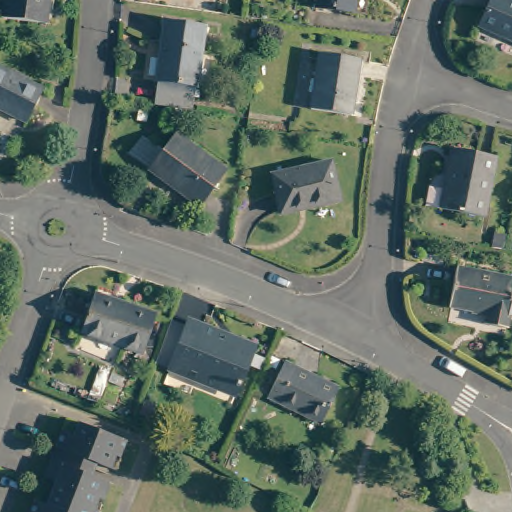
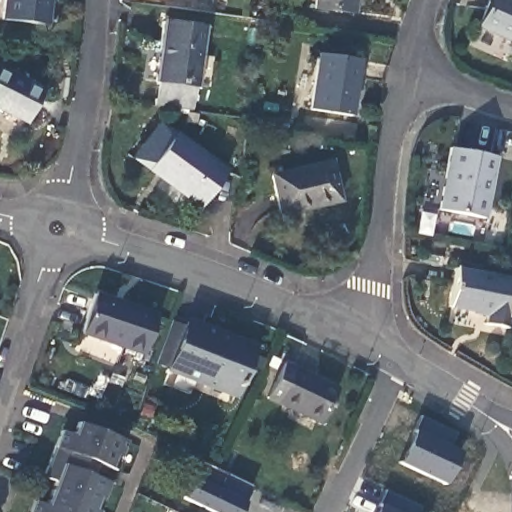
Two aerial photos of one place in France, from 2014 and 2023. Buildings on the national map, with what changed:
unchanged [(2,19),(5,0),(49,0),(46,25),(2,19)]
unchanged [(316,9),(317,0),(356,0),(354,13),(316,9)]
unchanged [(490,0),(512,0),(512,41),(479,27),(490,0)]
unchanged [(157,71),(156,71),(165,10),(207,16),(198,77),(195,77),(192,101),(154,95),(157,71)]
unchanged [(359,54),(352,111),(311,106),(319,49),(359,54)]
unchanged [(43,90),(26,124),(0,109),(0,68),(43,90)]
unchanged [(233,171),(205,209),(152,170),(133,155),(148,135),(168,150),(181,133),(233,171)]
unchanged [(484,217),(440,209),(452,149),(496,156),(484,217)]
unchanged [(331,160),(342,200),(282,214),(272,175),(331,160)]
unchanged [(505,329),(486,325),(486,316),(475,314),(474,312),(448,307),(456,266),(512,277),(512,316),(508,315),(505,329)]
unchanged [(156,313),(143,355),(81,333),(95,293),(156,313)]
unchanged [(256,346),(236,396),(169,370),(188,320),(256,346)]
unchanged [(338,388),(321,424),(267,398),(284,362),(338,388)]
unchanged [(140,436),(134,452),(127,450),(122,463),(95,453),(90,465),(124,478),(118,495),(111,492),(106,505),(113,507),(111,512),(44,512),(49,496),(61,500),(71,476),(59,472),(77,426),(89,430),(94,417),(140,436)]
new [(414,430),(421,417),(455,434),(447,446),(459,452),(443,484),(399,462),(414,430)]
new [(200,460),(217,467),(253,485),(241,512),(213,512),(183,497),(200,460)]
new [(421,506),(419,512),(375,512),(386,489),(421,506)]

